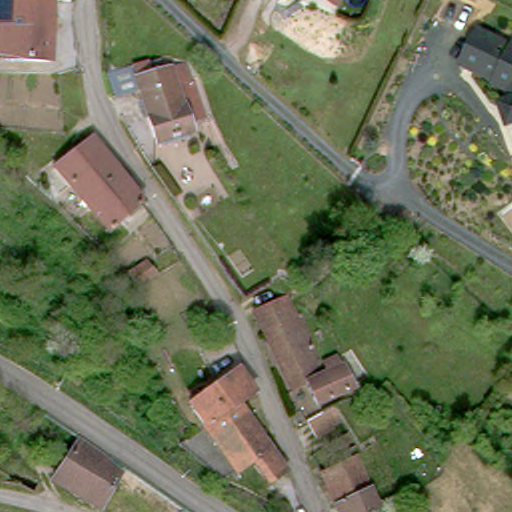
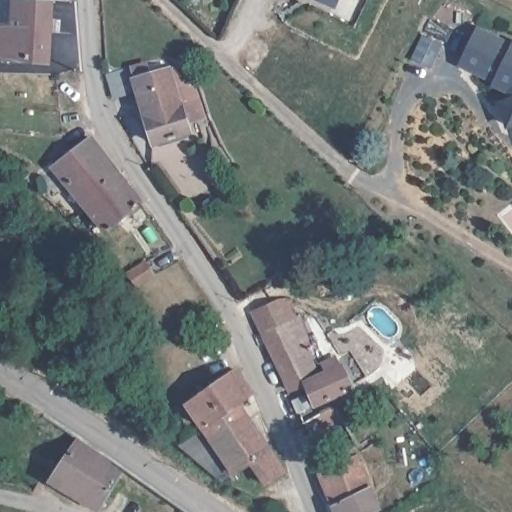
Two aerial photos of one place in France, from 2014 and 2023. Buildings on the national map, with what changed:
unchanged [(7,58),(9,29),(0,28),(0,0),(57,0),(54,62),(7,58)]
unchanged [(333,0),(333,2),(329,0),(333,0)]
unchanged [(198,14),(200,11),(203,2),(213,6),(208,17),(198,14)]
unchanged [(502,81),(472,67),(467,65),(484,29),(488,31),(512,42),(512,88),(501,83),(502,81)]
unchanged [(142,82),(181,71),(200,127),(185,132),(187,139),(150,150),(133,98),(110,105),(103,81),(129,74),(138,71),(142,82)]
unchanged [(507,102),(512,101),(512,118),(510,112),(507,102)]
unchanged [(108,230),(55,166),(91,136),(141,201),(108,230)]
unchanged [(128,273),(145,261),(156,275),(139,286),(128,273)]
unchanged [(342,356),(355,377),(316,395),(308,377),(291,383),(254,303),(289,288),(324,365),(342,356)]
unchanged [(252,387),(240,397),(285,467),(268,480),(252,458),(237,468),(188,399),(239,365),(252,387)]
unchanged [(73,435),(89,445),(94,450),(116,470),(95,506),(47,476),(73,435)]
unchanged [(320,472),(358,453),(381,512),(336,512),(320,472)]

